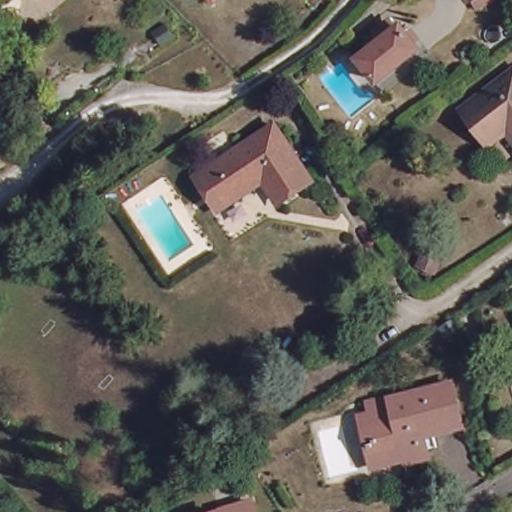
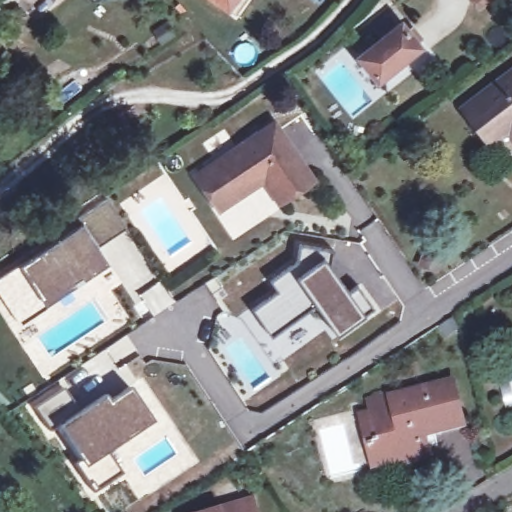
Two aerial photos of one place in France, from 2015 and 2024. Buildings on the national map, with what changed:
unchanged [(215,0),(214,1),(213,0),(215,0)]
unchanged [(467,0),(479,0),(470,6),(467,0)]
unchanged [(377,78),(361,57),(387,35),(381,27),(388,21),(394,29),(401,24),(418,46),(377,78)]
unchanged [(487,95),(512,76),(512,132),(494,146),(468,110),(487,95)]
unchanged [(85,138),(106,121),(107,122),(123,141),(78,180),(60,159),(85,138)]
unchanged [(273,123),(311,178),(278,200),(260,175),(218,203),(199,174),(273,123)]
new [(106,200),(126,228),(97,248),(108,263),(46,304),(21,322),(0,292),(0,280),(22,267),(83,226),(82,217),(106,200)]
new [(315,304),(272,336),(254,312),(281,292),(274,283),(298,264),(301,247),(333,252),(328,267),(347,294),(358,287),(373,308),(363,315),(338,333),(315,304)]
unchanged [(370,438),(364,409),(373,406),(368,389),(391,383),(392,386),(454,371),(464,411),(424,421),(431,448),(405,455),(404,450),(386,455),(375,458),(370,438)]
new [(109,404),(130,390),(151,422),(106,452),(121,473),(94,491),(76,464),(81,460),(58,427),(51,430),(36,408),(64,390),(81,412),(104,397),(109,404)]
unchanged [(258,505),(260,512),(235,512),(258,505)]

